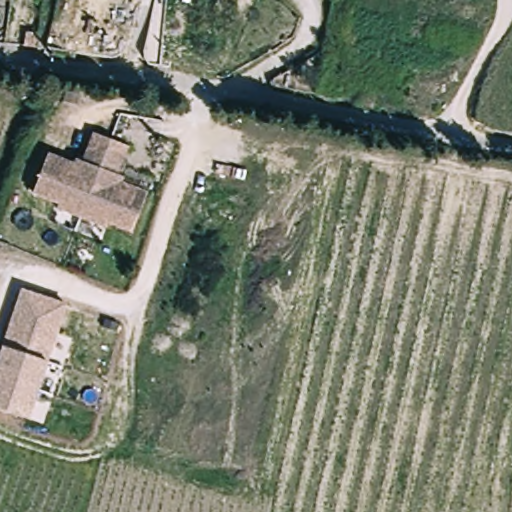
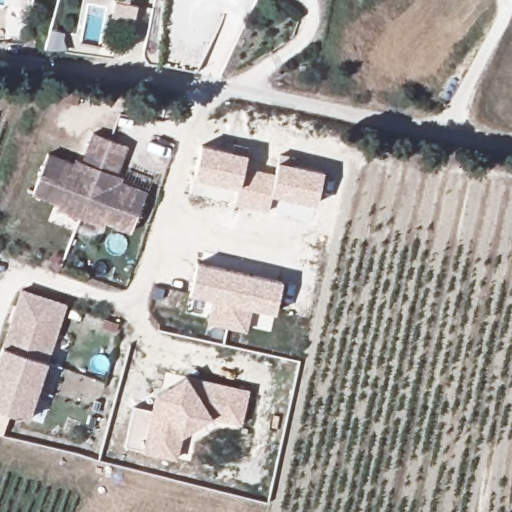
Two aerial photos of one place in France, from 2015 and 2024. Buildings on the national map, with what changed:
unchanged [(135,228),(109,218),(107,223),(59,207),(60,202),(35,193),(49,152),(82,164),(93,130),(127,142),(116,175),(149,187),(135,228)]
new [(246,164),(275,171),(277,161),(279,152),(294,155),(293,164),(324,171),(317,204),(273,194),(269,211),(234,202),(237,186),(194,175),(202,143),(232,149),(234,142),(250,147),(247,153),(246,164)]
new [(275,313),(252,307),(247,330),(209,321),(212,298),(189,293),(195,259),(282,279),(275,313)]
unchanged [(71,304),(33,418),(0,408),(0,371),(27,290),(71,304)]
new [(242,424),(210,417),(181,436),(177,457),(143,450),(125,445),(133,404),(150,408),(154,395),(187,374),(250,389),(242,424)]

